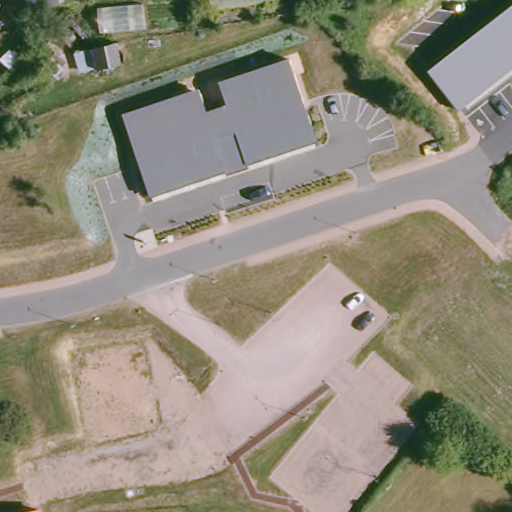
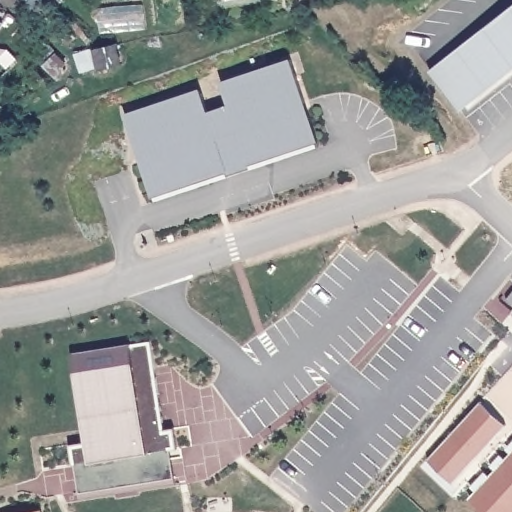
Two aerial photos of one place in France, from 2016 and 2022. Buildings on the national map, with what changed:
unchanged [(34,11),(30,0),(59,0),(60,0),(34,11)]
unchanged [(0,21),(0,6),(5,7),(0,21)]
unchanged [(429,72),(512,6),(512,67),(460,110),(429,72)]
unchanged [(2,40),(0,46),(0,24),(7,26),(2,40)]
unchanged [(80,74),(75,55),(94,51),(118,46),(123,67),(98,74),(80,74)]
unchanged [(126,119),(200,95),(205,114),(228,106),(222,86),(290,63),(317,145),(250,166),(247,161),(225,170),(226,175),(153,198),(126,119)]
new [(80,498),(72,443),(85,440),(73,352),(130,343),(130,347),(150,340),(165,428),(175,427),(178,447),(170,449),(177,482),(80,498)]
new [(452,485),(425,464),(481,405),(504,426),(452,485)]
new [(470,500),(479,491),(467,480),(512,432),(512,508),(508,512),(484,512),(470,500)]
unchanged [(42,509),(42,512),(22,512),(42,509)]

